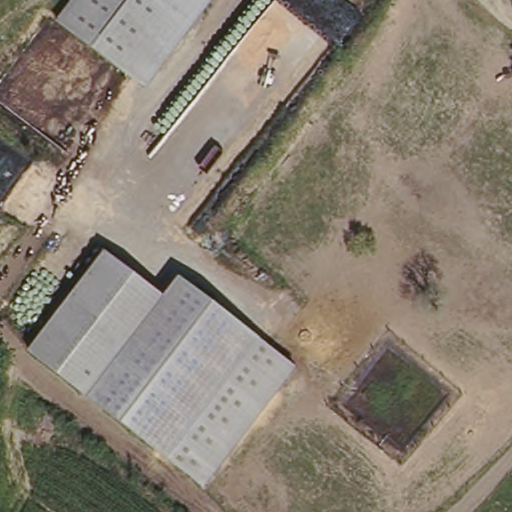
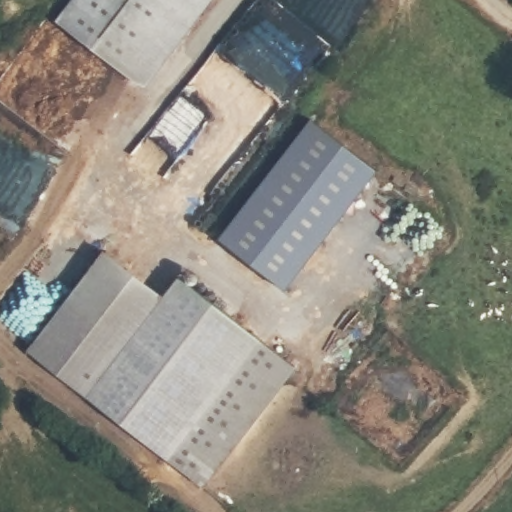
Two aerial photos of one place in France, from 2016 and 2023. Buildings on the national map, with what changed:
unchanged [(149,89),(57,21),(74,0),(218,0),(149,89)]
new [(381,176),(283,298),(215,240),(310,123),(381,176)]
unchanged [(164,295),(178,275),(296,365),(204,487),(27,351),(105,250),(164,295)]

